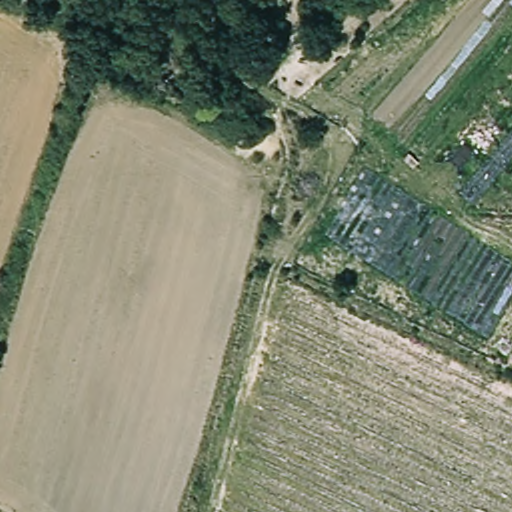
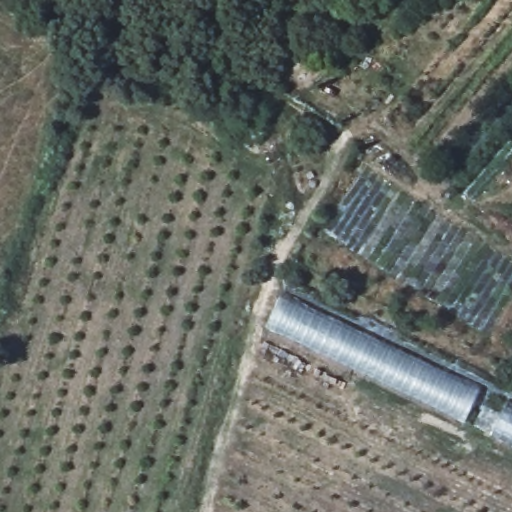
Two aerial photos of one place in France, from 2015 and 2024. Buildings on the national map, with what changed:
new [(465,420),(265,326),(279,297),(479,391),(465,420)]
new [(507,404),(512,407),(512,445),(492,435),(507,404)]

